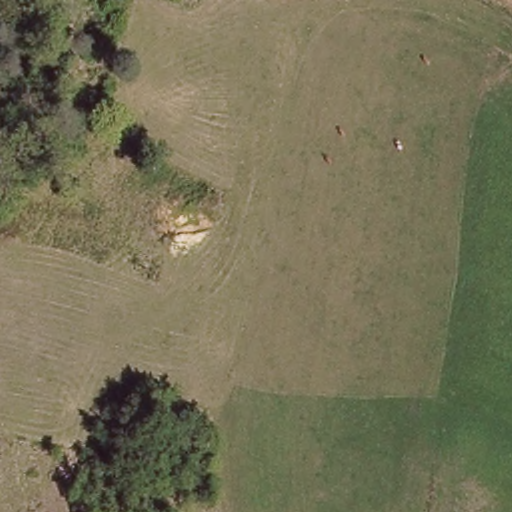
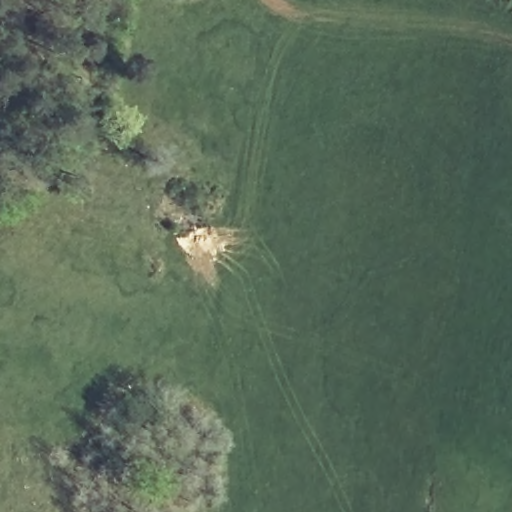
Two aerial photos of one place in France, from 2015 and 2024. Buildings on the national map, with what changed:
[]

